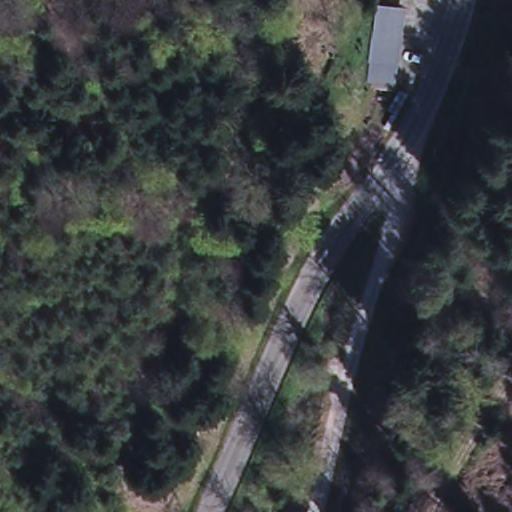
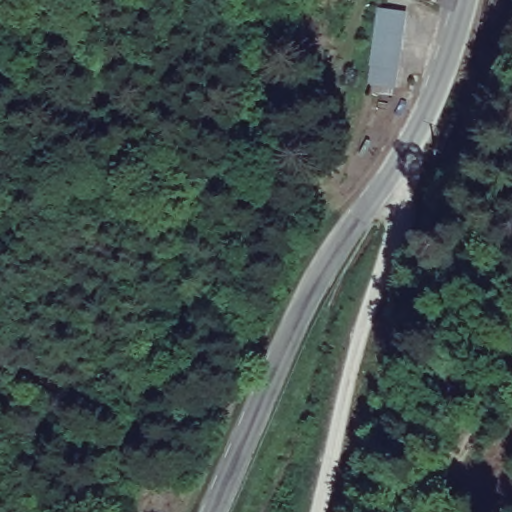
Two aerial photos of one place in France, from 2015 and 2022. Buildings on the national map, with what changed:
unchanged [(364,85),(368,63),(365,62),(367,52),(373,15),(399,19),(393,56),(392,67),(388,89),(364,85)]

